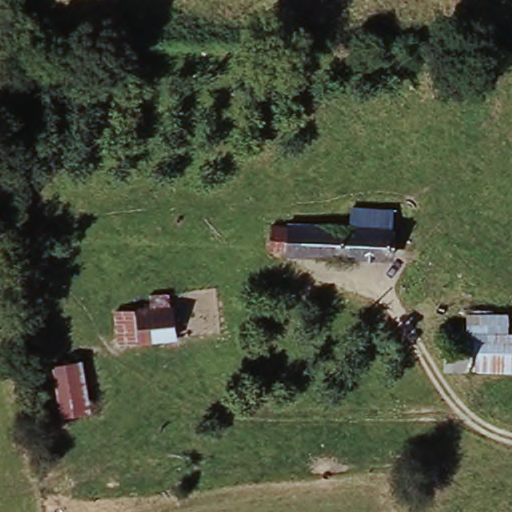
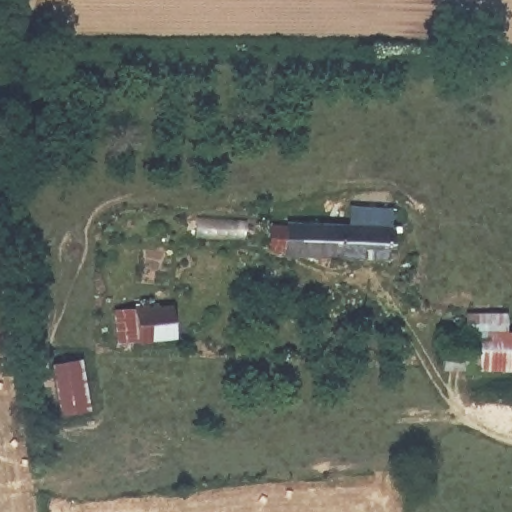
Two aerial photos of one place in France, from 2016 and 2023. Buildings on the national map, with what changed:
unchanged [(353,238),(355,220),(395,222),(392,272),(274,263),(276,239),(290,241),(291,234),(353,238)]
unchanged [(105,320),(130,318),(140,316),(139,298),(162,297),(163,313),(172,312),(176,343),(133,348),(109,350),(105,320)]
unchanged [(469,335),(471,309),(512,311),(512,372),(449,370),(453,333),(469,335)]
unchanged [(84,363),(90,415),(65,419),(59,366),(84,363)]

